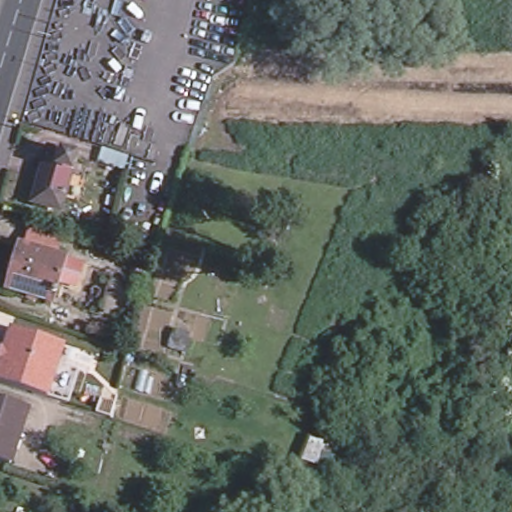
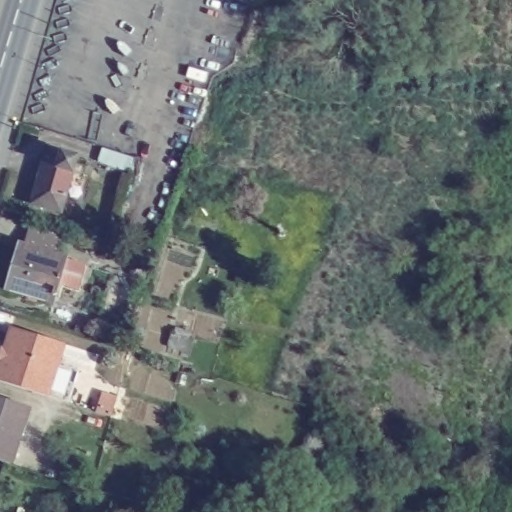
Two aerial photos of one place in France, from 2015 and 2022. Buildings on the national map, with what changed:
unchanged [(78,160),(63,213),(34,205),(50,152),(78,160)]
unchanged [(48,285),(41,306),(0,294),(0,280),(10,250),(14,250),(20,232),(53,242),(47,261),(55,263),(54,265),(75,272),(68,291),(48,285)]
unchanged [(51,360),(70,366),(58,400),(0,382),(0,341),(5,325),(56,341),(51,360)]
unchanged [(8,464),(0,461),(0,399),(26,407),(8,464)]

